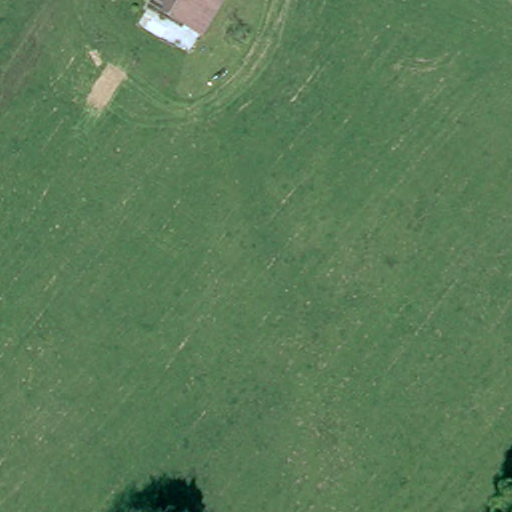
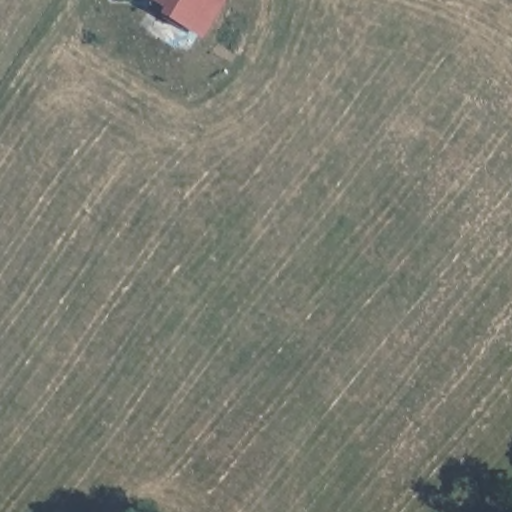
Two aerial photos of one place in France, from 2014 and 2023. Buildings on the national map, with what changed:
unchanged [(197,32),(167,13),(171,7),(160,0),(221,0),(197,32)]

